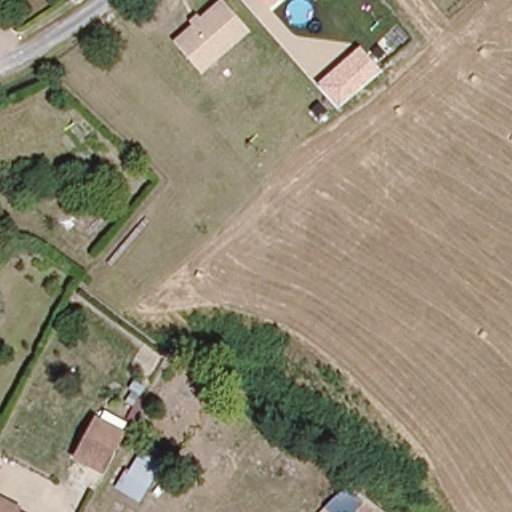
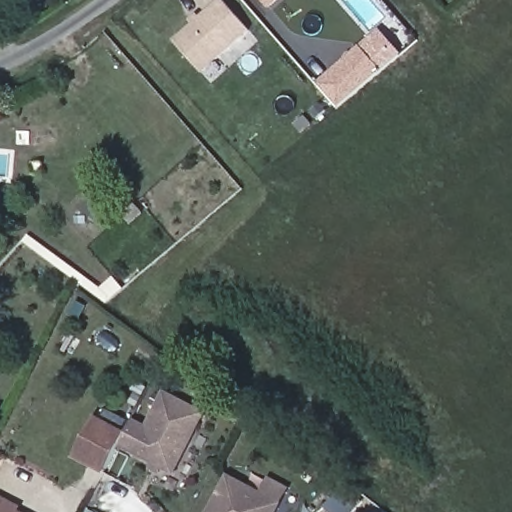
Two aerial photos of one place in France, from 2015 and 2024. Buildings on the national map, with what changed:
unchanged [(175,41),(219,0),(223,0),(251,32),(204,74),(175,41)]
unchanged [(265,0),(281,0),(272,7),(265,0)]
unchanged [(337,110),(317,85),(359,47),(381,72),(337,110)]
new [(119,447),(125,434),(134,419),(147,427),(165,391),(207,412),(175,476),(119,447)]
unchanged [(75,457),(95,418),(125,434),(105,473),(75,457)]
new [(278,512),(208,512),(227,473),(261,492),(268,477),(290,488),(278,512)]
unchanged [(19,510),(18,512),(0,512),(0,501),(19,510)]

